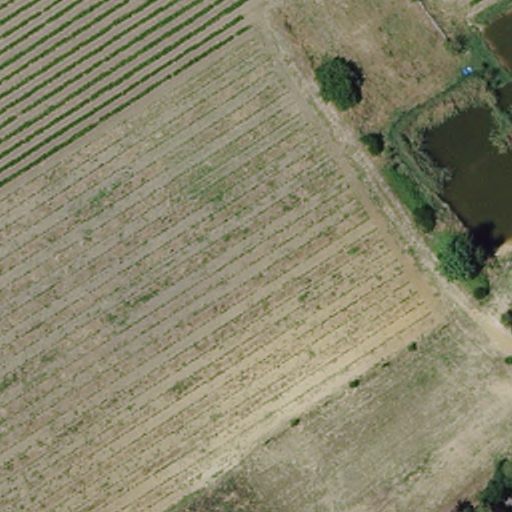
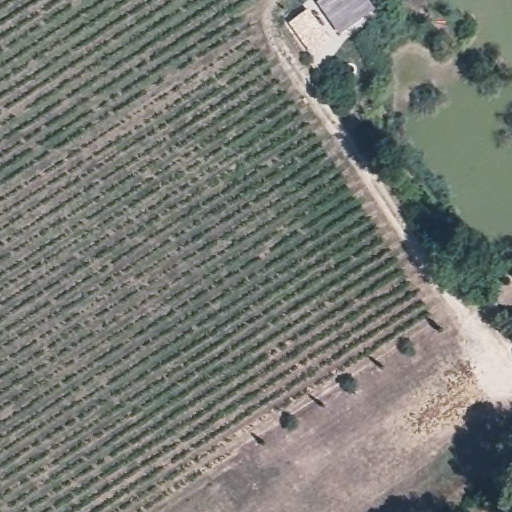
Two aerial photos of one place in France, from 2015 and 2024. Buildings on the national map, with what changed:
new [(316,2),(319,0),(370,0),(378,10),(341,36),(316,2)]
new [(289,23),(309,9),(333,41),(312,56),(289,23)]

